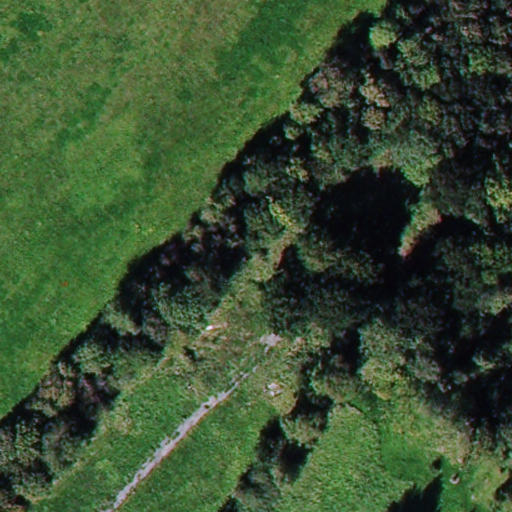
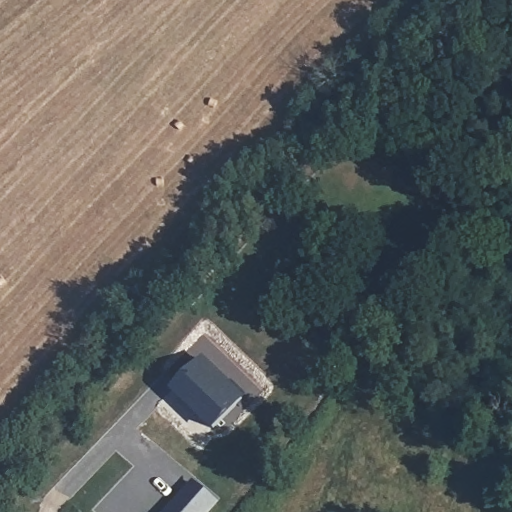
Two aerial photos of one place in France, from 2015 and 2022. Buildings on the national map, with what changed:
new [(247,398),(214,433),(171,391),(205,357),(247,398)]

